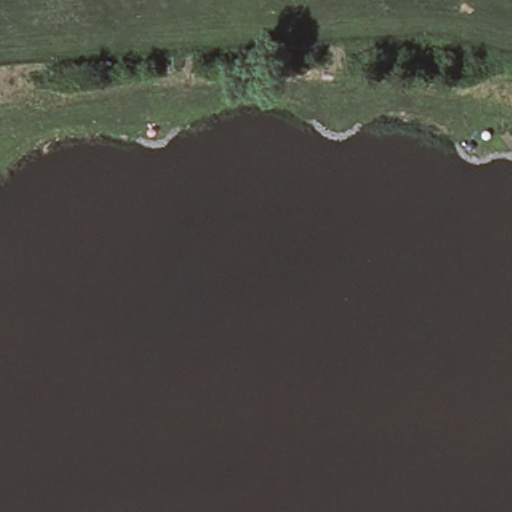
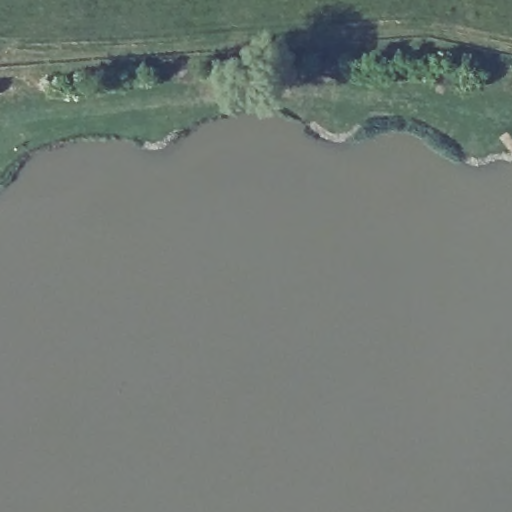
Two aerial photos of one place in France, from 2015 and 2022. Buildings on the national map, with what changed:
[]

